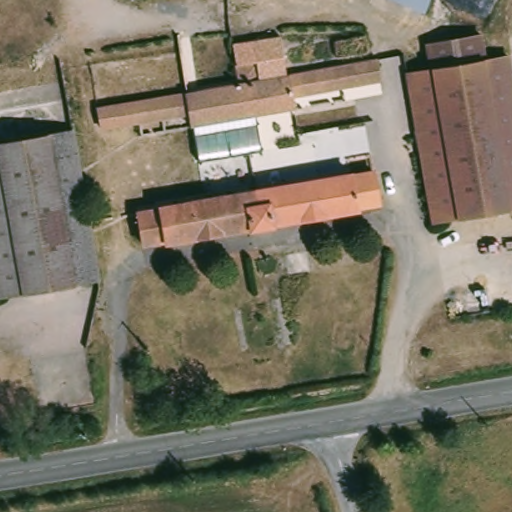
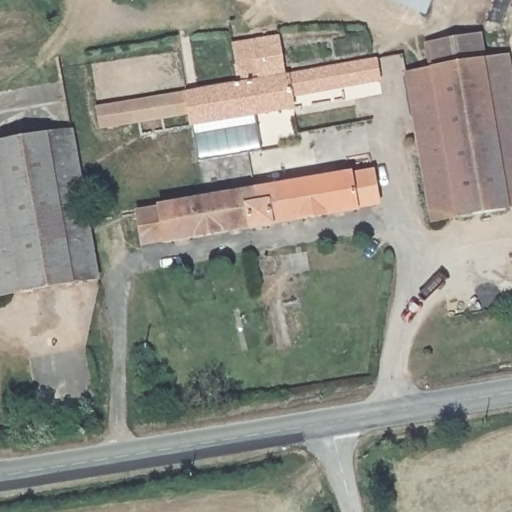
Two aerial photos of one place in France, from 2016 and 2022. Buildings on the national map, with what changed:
unchanged [(396,0),(429,0),(425,11),(396,0)]
unchanged [(430,71),(426,45),(479,37),(484,61),(507,59),(512,90),(512,206),(431,222),(406,75),(430,71)]
unchanged [(232,89),(229,69),(254,66),(258,85),(358,68),(372,66),(376,86),(287,101),(289,110),(188,126),(186,114),(98,128),(94,109),(135,103),(201,94),(232,89)]
unchanged [(96,277),(0,294),(0,139),(67,128),(96,277)]
unchanged [(356,175),(381,171),(385,200),(361,203),(362,210),(174,240),(174,235),(151,239),(146,207),(168,203),(167,199),(356,171),(356,175)]

